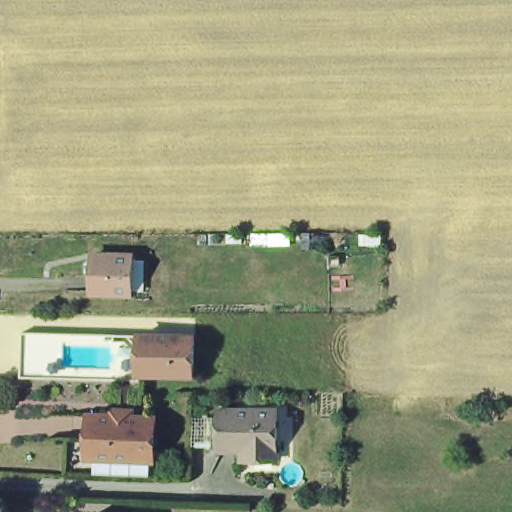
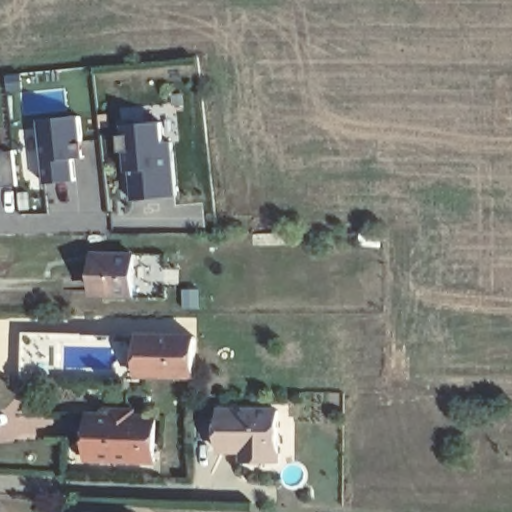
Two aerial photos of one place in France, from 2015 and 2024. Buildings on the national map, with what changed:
new [(73,158),(76,181),(45,184),(39,120),(80,116),(84,157),(73,158)]
new [(176,197),(133,201),(130,171),(127,171),(125,151),(122,151),(120,135),(123,134),(123,126),(163,122),(164,142),(172,142),(176,197)]
new [(3,187),(0,187),(0,153),(13,151),(18,186),(3,187)]
unchanged [(92,295),(93,276),(93,254),(129,256),(128,275),(128,296),(92,295)]
unchanged [(139,346),(151,335),(196,336),(194,376),(139,374),(139,346)]
unchanged [(278,412),(278,457),(253,457),(253,452),(218,451),(219,411),(278,412)]
unchanged [(155,466),(94,465),(89,464),(89,421),(94,421),(113,421),(113,417),(133,418),(133,422),(156,422),(155,466)]

